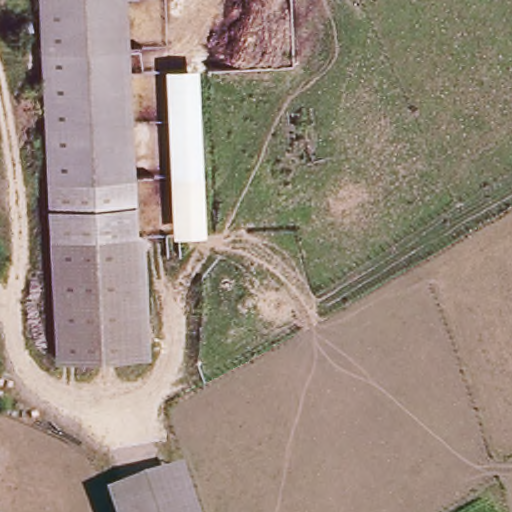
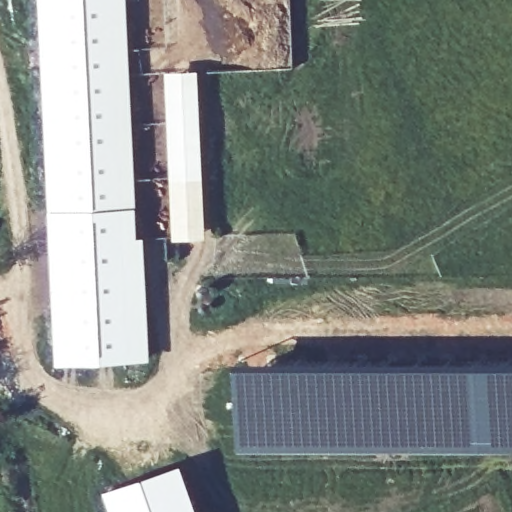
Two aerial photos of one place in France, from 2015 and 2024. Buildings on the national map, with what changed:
unchanged [(66,362),(43,0),(118,0),(139,358),(66,362)]
unchanged [(167,72),(200,70),(208,239),(174,240),(167,72)]
new [(512,450),(466,451),(312,448),(242,450),(241,362),(512,362),(512,450)]
unchanged [(111,492),(186,468),(201,512),(118,512),(111,492)]

